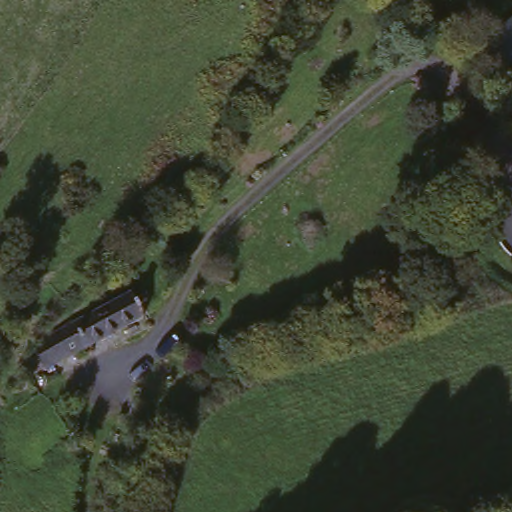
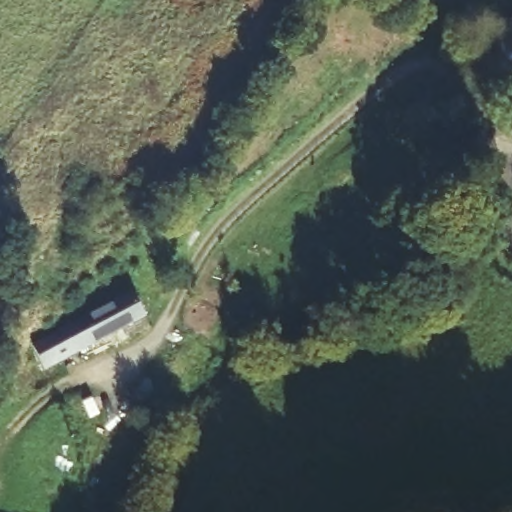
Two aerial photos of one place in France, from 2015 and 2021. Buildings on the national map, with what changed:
unchanged [(512,84),(507,87),(474,42),(512,14),(512,84)]
unchanged [(98,304),(135,288),(141,301),(152,296),(160,314),(31,371),(16,339),(98,304)]

